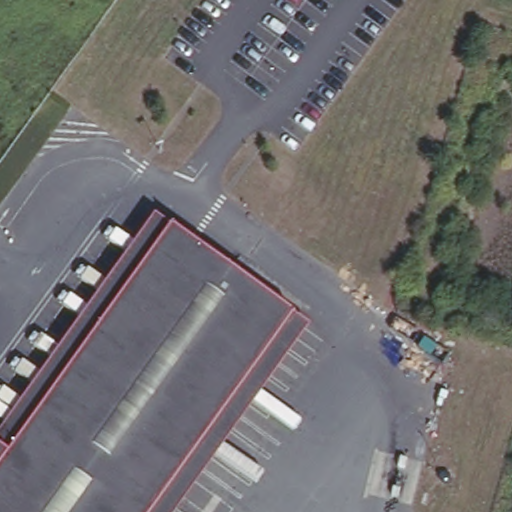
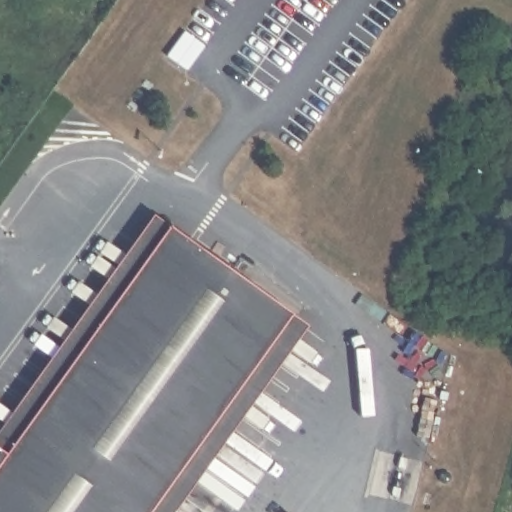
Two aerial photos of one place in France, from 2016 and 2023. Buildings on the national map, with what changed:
unchanged [(170,226),(298,318),(296,321),(307,331),(176,512),(0,512),(0,429),(152,216),(170,226)]

